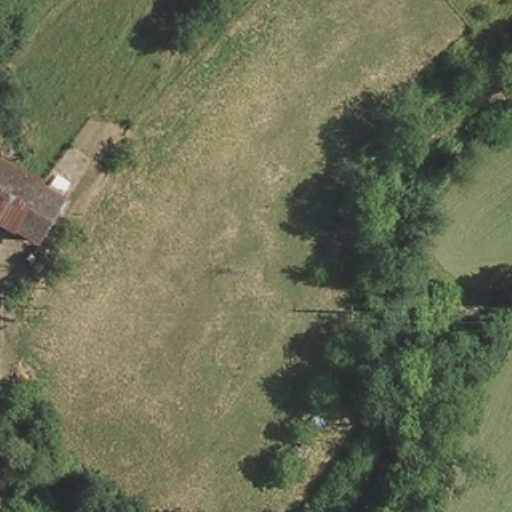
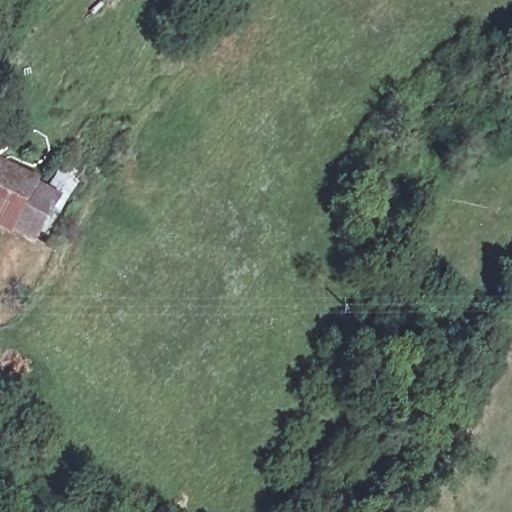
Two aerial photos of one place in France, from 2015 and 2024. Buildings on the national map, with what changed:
unchanged [(32,177),(57,201),(33,228),(17,216),(6,228),(0,223),(0,165),(5,152),(32,177)]

